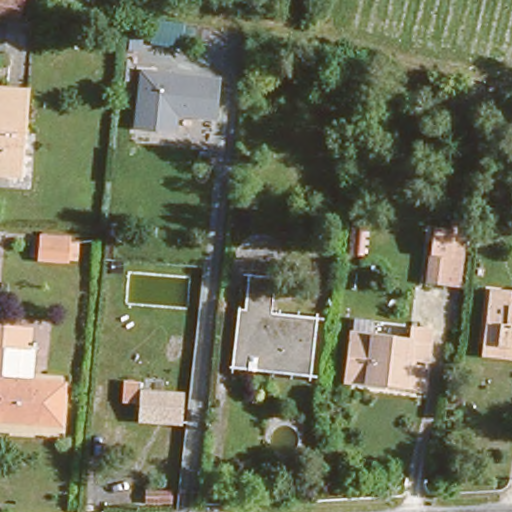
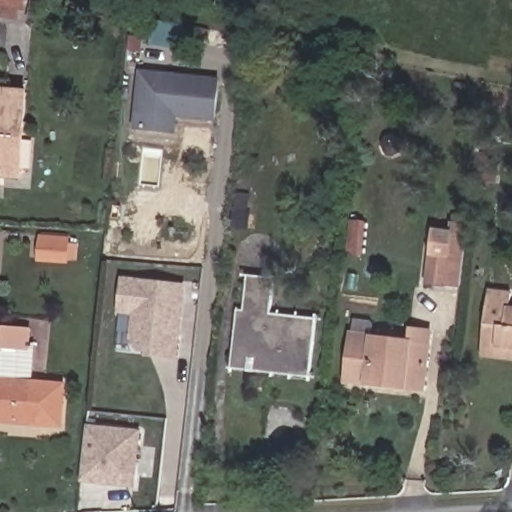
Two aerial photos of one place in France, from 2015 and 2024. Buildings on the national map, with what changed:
unchanged [(22,17),(0,13),(0,0),(25,0),(22,17)]
unchanged [(140,69),(220,76),(217,119),(177,116),(175,134),(131,130),(140,69)]
unchanged [(0,169),(0,89),(21,90),(15,169),(0,169)]
new [(475,180),(467,179),(471,151),(483,152),(482,160),(491,161),(491,167),(488,182),(475,180)]
unchanged [(348,242),(351,213),(363,214),(362,243),(348,242)]
unchanged [(455,284),(422,279),(427,242),(439,244),(441,225),(462,228),(455,284)]
unchanged [(39,260),(40,238),(66,239),(65,261),(39,260)]
unchanged [(222,375),(232,293),(242,294),(244,261),(277,265),(273,305),(313,310),(306,373),(275,371),(275,379),(222,375)]
new [(140,348),(132,339),(136,313),(121,311),(124,280),(184,286),(176,357),(159,355),(148,354),(149,349),(160,350),(140,348)]
unchanged [(499,314),(482,314),(485,282),(510,285),(509,300),(512,300),(512,338),(498,337),(499,314)]
unchanged [(498,337),(512,338),(512,355),(478,352),(482,314),(499,314),(498,337)]
unchanged [(344,317),(367,320),(366,334),(342,332),(344,317)]
unchanged [(9,342),(7,380),(62,382),(61,422),(0,420),(0,322),(36,325),(35,344),(9,342)]
unchanged [(365,382),(367,369),(340,366),(342,341),(370,344),(371,334),(402,337),(403,324),(430,327),(424,388),(398,385),(400,372),(385,370),(383,383),(365,382)]
demolished [(132,418),(136,388),(181,392),(180,423),(132,418)]
new [(139,432),(134,487),(80,481),(86,426),(139,432)]

